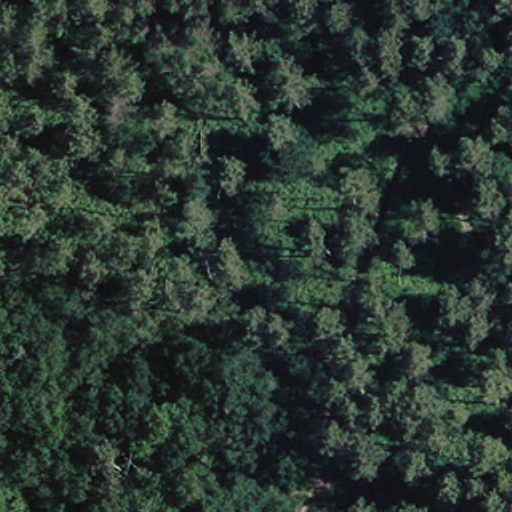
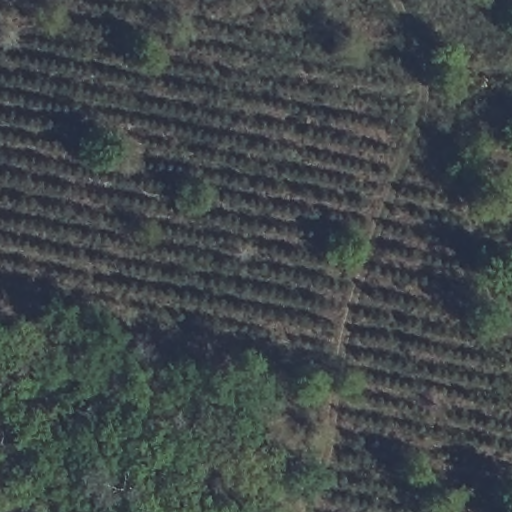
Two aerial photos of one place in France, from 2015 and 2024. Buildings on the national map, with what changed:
[]

